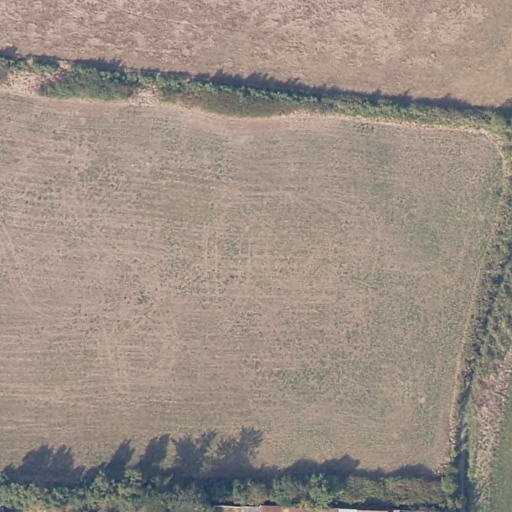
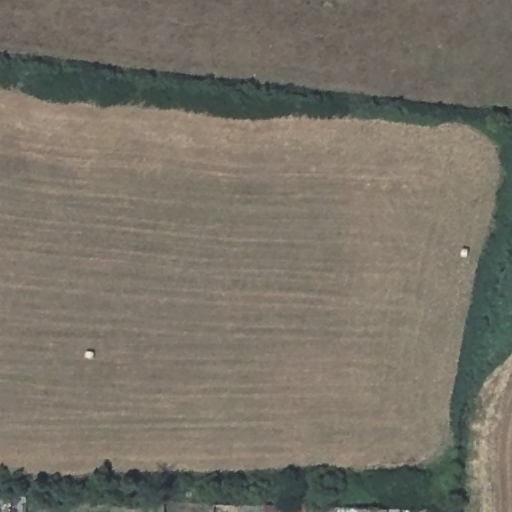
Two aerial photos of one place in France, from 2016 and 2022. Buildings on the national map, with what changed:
unchanged [(355,509),(389,510),(389,512),(354,512),(356,511),(355,509)]

